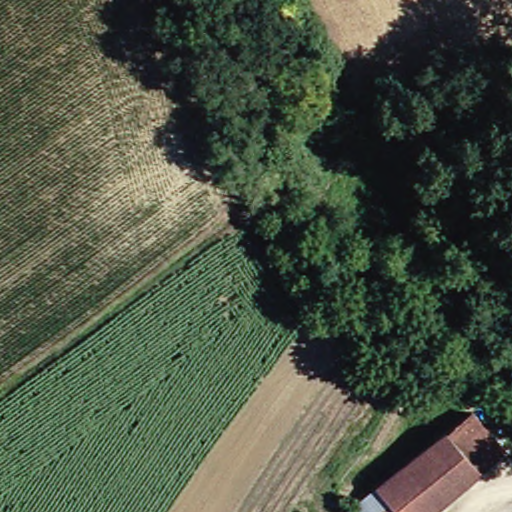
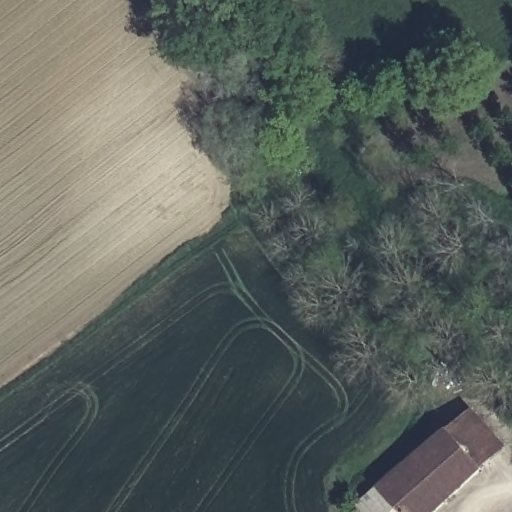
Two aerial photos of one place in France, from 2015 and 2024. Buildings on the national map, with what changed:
unchanged [(507,449),(485,468),(451,426),(472,407),(507,449)]
unchanged [(366,512),(361,506),(451,426),(485,468),(437,512),(366,512)]

